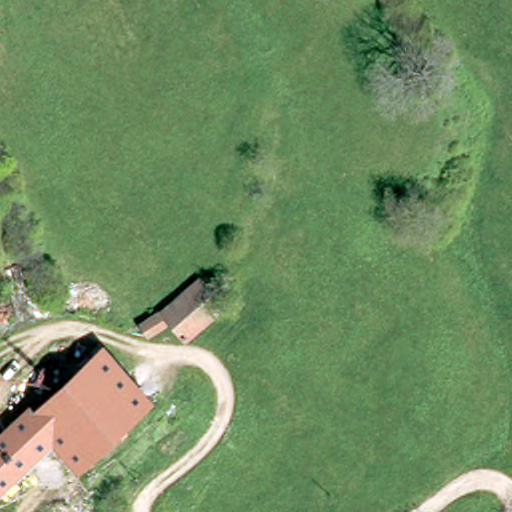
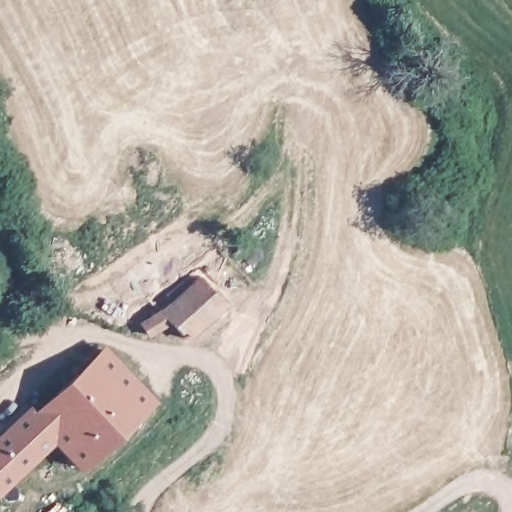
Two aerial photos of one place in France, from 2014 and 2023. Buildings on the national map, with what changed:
unchanged [(169,331),(155,348),(128,326),(146,310),(151,317),(184,287),(199,275),(223,302),(209,315),(181,341),(169,331)]
unchanged [(153,412),(127,434),(133,442),(119,454),(113,447),(80,474),(53,445),(28,418),(76,376),(68,368),(94,343),(153,412)]
unchanged [(53,445),(15,478),(0,491),(0,443),(28,418),(53,445)]

